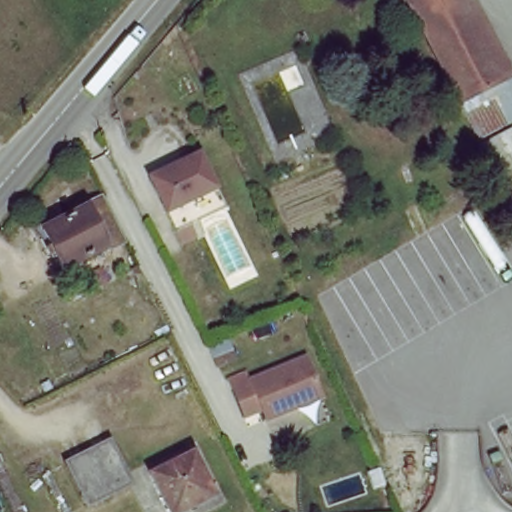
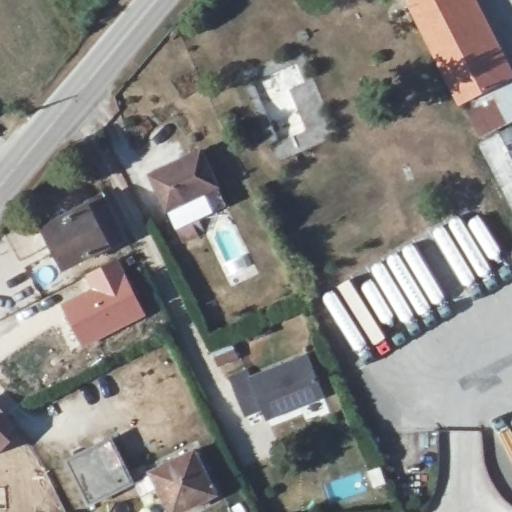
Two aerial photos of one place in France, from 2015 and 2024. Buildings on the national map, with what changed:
unchanged [(410,0),(409,1),(408,0),(410,0)]
unchanged [(465,0),(507,80),(483,93),(469,100),(461,104),(456,94),(432,49),(423,30),(409,1),(410,0),(465,0)]
unchanged [(484,148),(512,133),(512,202),(484,148)]
unchanged [(153,166),(202,142),(228,196),(177,220),(153,166)]
unchanged [(110,245),(66,266),(45,225),(90,204),(89,201),(100,196),(107,194),(129,235),(130,239),(123,242),(111,248),(110,245)]
new [(90,287),(84,276),(118,258),(147,315),(83,348),(60,303),(90,287)]
new [(232,343),(244,368),(223,377),(212,352),(232,343)]
unchanged [(290,407),(271,415),(266,405),(248,412),(235,383),(307,353),(321,383),(325,392),(290,407)]
new [(9,417),(0,426),(13,438),(0,451),(0,409),(9,417)]
unchanged [(92,497),(72,456),(115,435),(133,472),(136,477),(92,497)]
unchanged [(186,512),(176,512),(156,470),(198,450),(221,495),(186,512)]

